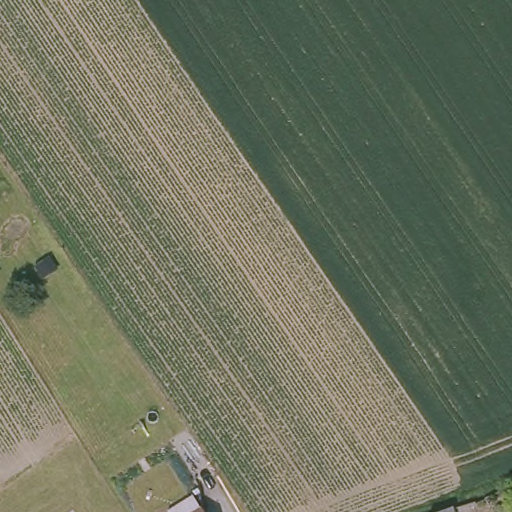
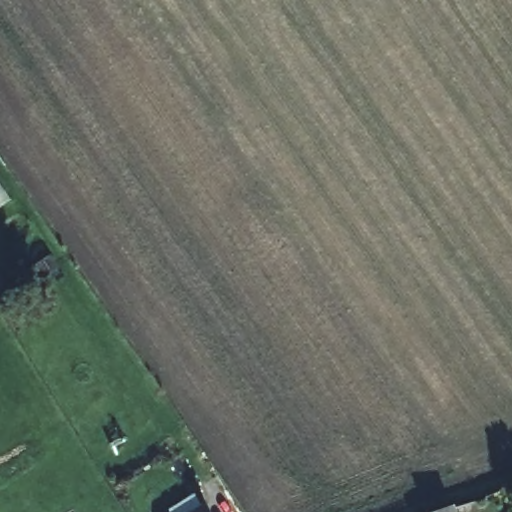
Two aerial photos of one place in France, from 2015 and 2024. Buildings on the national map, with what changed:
unchanged [(172,511),(197,495),(206,509),(207,508),(209,512),(172,512),(172,511)]

